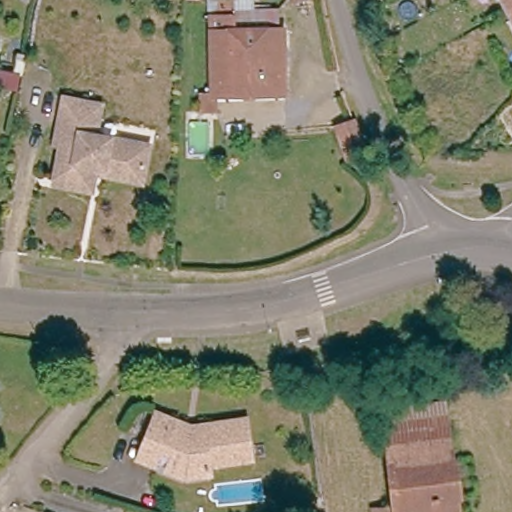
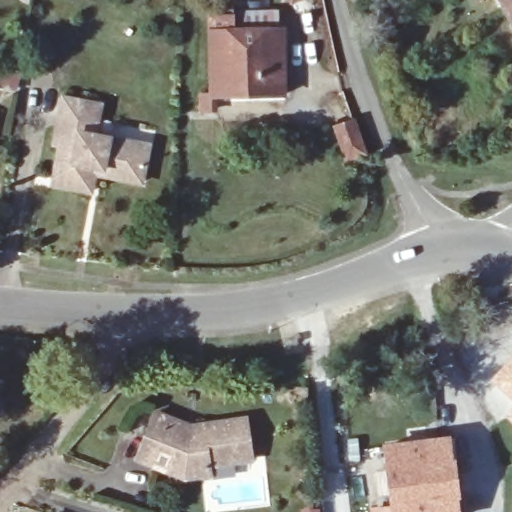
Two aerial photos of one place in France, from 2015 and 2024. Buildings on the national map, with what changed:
unchanged [(291,2),(291,0),(295,0),(291,2)]
unchanged [(505,12),(499,0),(512,0),(512,25),(505,12)]
unchanged [(201,110),(201,96),(211,95),(209,15),(219,15),(219,1),(233,1),(233,12),(276,12),(276,30),(283,30),(284,94),(214,95),(215,110),(201,110)]
unchanged [(55,178),(61,145),(54,144),(63,97),(101,105),(98,119),(95,135),(149,145),(142,183),(95,174),(92,192),(70,187),(53,184),(55,178)]
unchanged [(353,121),(364,153),(346,159),(336,127),(353,121)]
unchanged [(309,331),(312,340),(298,343),(296,335),(309,331)]
new [(489,380),(512,355),(512,400),(489,380)]
new [(503,416),(512,406),(512,423),(503,416)]
unchanged [(246,418),(252,460),(209,467),(211,475),(184,479),(163,470),(168,457),(160,453),(154,467),(136,459),(155,412),(191,426),(246,418)]
unchanged [(458,490),(457,491),(459,512),(373,512),(372,505),(393,502),(385,442),(448,433),(451,456),(454,456),(458,490)]

